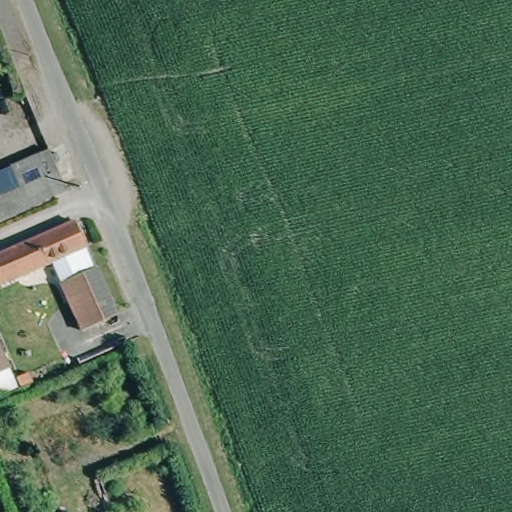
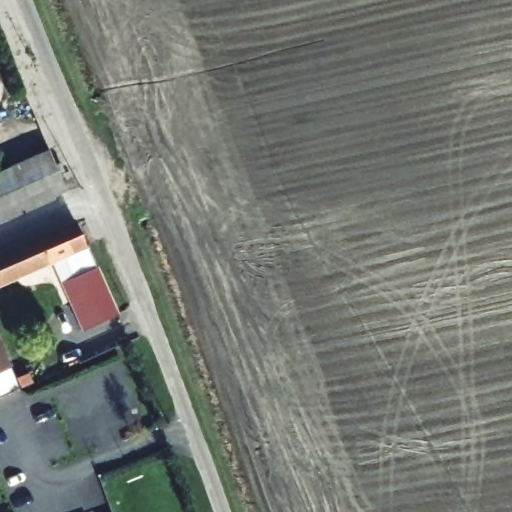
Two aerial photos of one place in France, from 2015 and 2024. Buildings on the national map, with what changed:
unchanged [(17,165),(51,151),(66,190),(57,194),(60,199),(0,224),(0,195),(25,183),(17,165)]
unchanged [(113,318),(76,334),(47,264),(0,283),(0,257),(77,225),(113,318)]
unchanged [(0,395),(0,340),(17,388),(0,395)]

